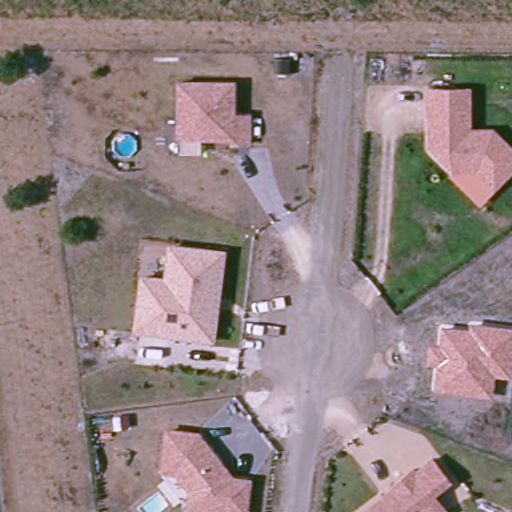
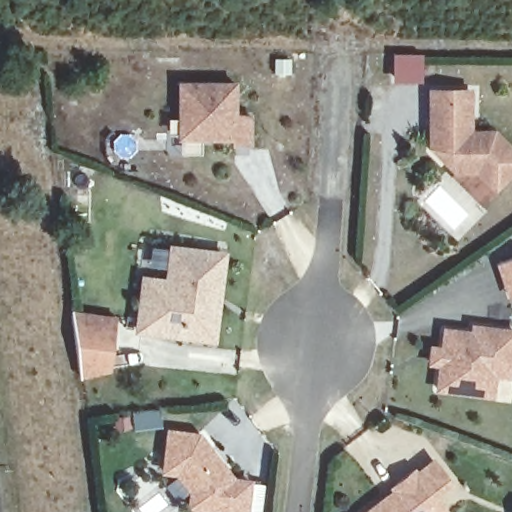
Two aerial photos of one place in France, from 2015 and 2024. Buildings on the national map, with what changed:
new [(395,54),(421,54),(421,82),(395,81),(395,54)]
unchanged [(234,81),(233,113),(248,113),(247,141),(231,140),(231,135),(177,135),(179,80),(234,81)]
unchanged [(489,129),(512,152),(512,162),(490,185),(472,167),(450,167),(427,144),(427,131),(427,119),(427,88),(465,88),(465,129),(489,129)]
unchanged [(137,330),(141,300),(144,278),(167,281),(171,249),(222,255),(217,295),(214,319),(211,338),(191,336),(162,333),(137,330)]
new [(497,263),(512,258),(512,297),(508,298),(497,263)]
new [(81,373),(75,321),(73,311),(115,316),(114,326),(109,366),(81,373)]
unchanged [(492,399),(435,392),(437,367),(426,367),(427,345),(440,345),(441,326),(470,328),(470,323),(512,327),(512,380),(495,378),(492,399)]
unchanged [(195,489),(181,471),(167,469),(173,430),(202,434),(216,451),(225,463),(236,477),(253,479),(249,511),(208,506),(193,504),(195,489)]
unchanged [(442,512),(361,512),(385,493),(391,487),(389,484),(411,466),(413,469),(430,456),(447,478),(431,491),(437,498),(445,509),(442,512)]

